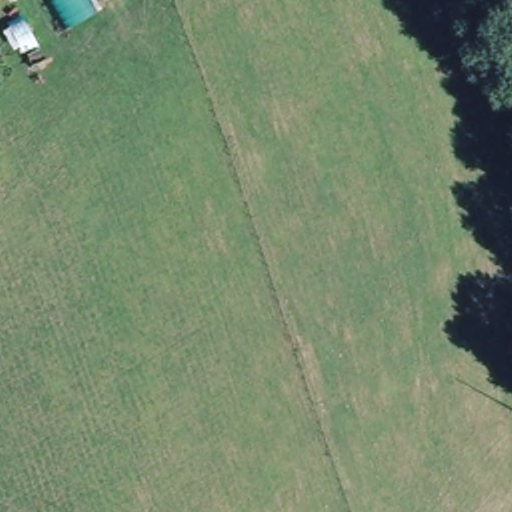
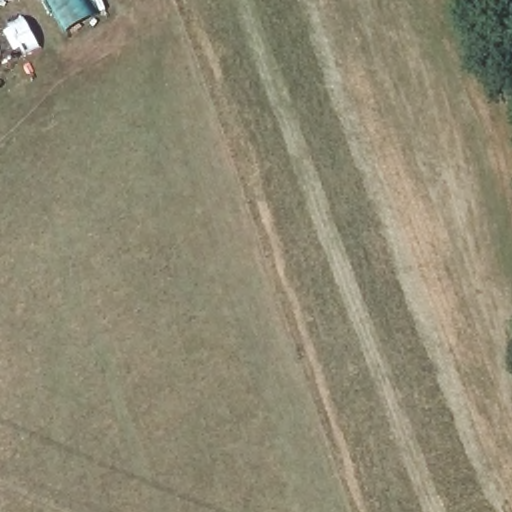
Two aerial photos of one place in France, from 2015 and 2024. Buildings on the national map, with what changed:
unchanged [(98,12),(70,29),(53,0),(91,0),(98,12)]

